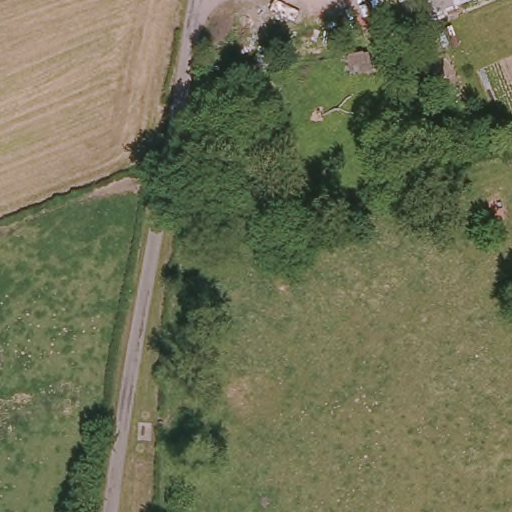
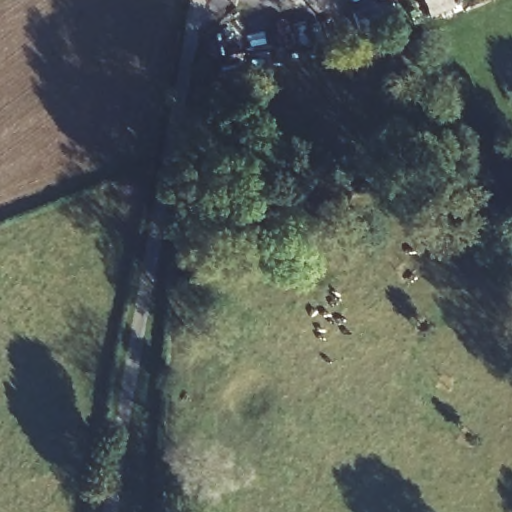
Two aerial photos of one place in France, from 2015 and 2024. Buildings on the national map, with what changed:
unchanged [(430,0),(447,0),(451,10),(428,20),(421,4),(430,0)]

